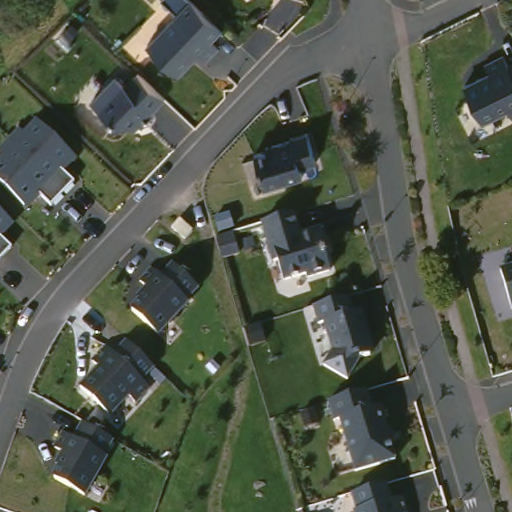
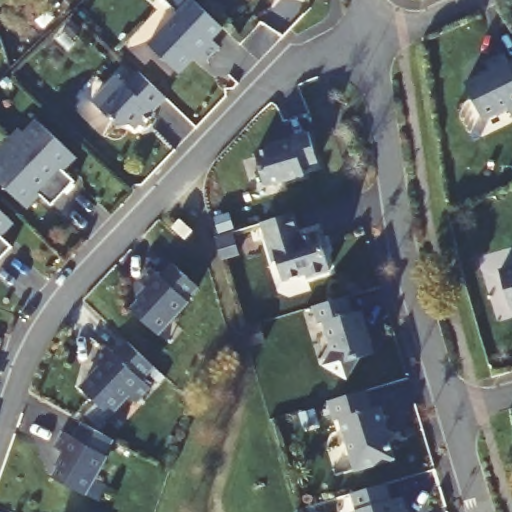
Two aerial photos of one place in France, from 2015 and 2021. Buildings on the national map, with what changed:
unchanged [(222,25),(211,37),(218,43),(204,58),(196,51),(178,71),(147,42),(177,10),(166,0),(196,0),(222,25)]
unchanged [(508,51),(512,59),(512,105),(511,104),(487,116),(469,80),(494,68),(489,60),(508,51)]
unchanged [(170,95),(157,108),(159,110),(146,124),(143,121),(138,126),(134,122),(121,122),(96,98),(120,73),(130,83),(143,69),(170,95)]
unchanged [(62,167),(76,180),(53,205),(39,192),(26,205),(0,181),(0,166),(5,160),(0,156),(0,152),(21,129),(28,135),(40,122),(74,154),(62,167)]
unchanged [(316,159),(301,163),(303,172),(265,183),(255,150),(267,146),(266,143),(291,136),(291,134),(307,129),(316,159)]
unchanged [(0,229),(0,203),(12,215),(0,229)]
unchanged [(276,212),(298,206),(303,223),(299,224),(301,231),(326,223),(332,241),(328,242),(334,263),(312,270),(310,266),(288,273),(282,253),(278,254),(266,215),(276,212)]
unchanged [(190,228),(183,236),(170,224),(177,216),(190,228)]
unchanged [(0,258),(0,229),(14,242),(0,258)]
unchanged [(202,283),(190,296),(193,298),(163,331),(137,307),(145,298),(142,295),(151,284),(144,278),(156,265),(165,273),(177,260),(202,283)]
unchanged [(511,303),(500,265),(512,261),(512,303),(511,303)]
unchanged [(357,306),(366,303),(376,337),(371,338),(374,348),(364,351),(352,372),(328,359),(336,344),(328,316),(322,317),(317,300),(342,292),(352,289),(357,306)]
unchanged [(251,323),(259,320),(264,336),(248,341),(243,325),(251,323)]
unchanged [(137,345),(158,364),(146,377),(154,385),(140,400),(133,393),(114,413),(85,385),(104,365),(97,359),(111,344),(120,352),(132,339),(137,345)]
unchanged [(376,408),(385,405),(392,428),(398,431),(393,438),(399,458),(359,470),(344,418),(338,420),(332,400),(369,389),(370,388),(376,408)]
unchanged [(106,445),(109,446),(94,488),(62,477),(66,465),(61,463),(66,449),(57,446),(63,430),(75,434),(80,417),(112,429),(106,445)]
unchanged [(385,487),(388,499),(393,497),(397,511),(406,509),(407,512),(356,512),(352,497),(366,492),(385,487)]

